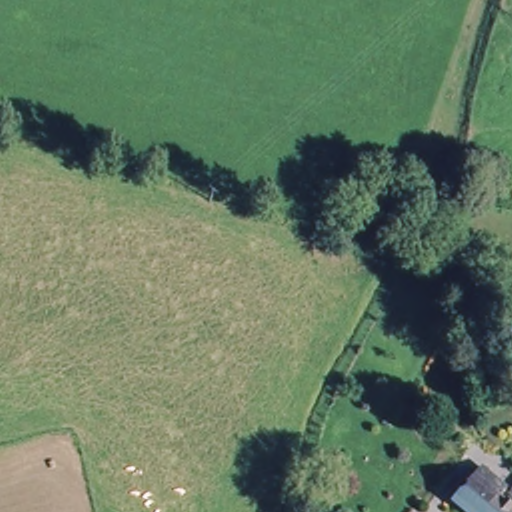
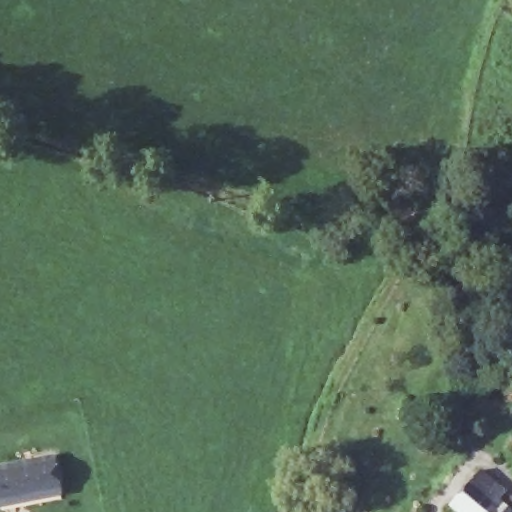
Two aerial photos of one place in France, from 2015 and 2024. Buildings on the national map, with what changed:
new [(62,489),(0,500),(0,468),(56,457),(62,489)]
unchanged [(475,474),(504,500),(497,508),(502,512),(451,512),(449,510),(475,474)]

